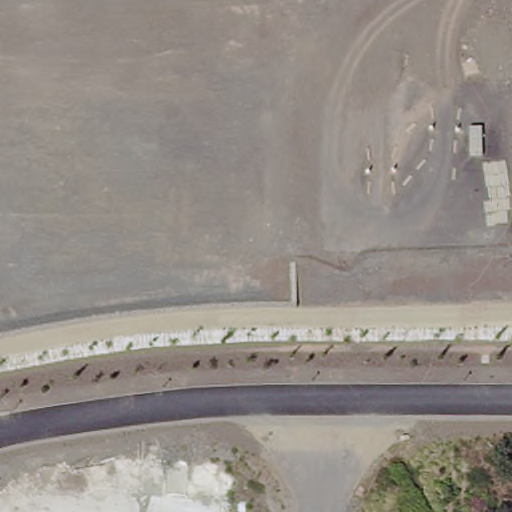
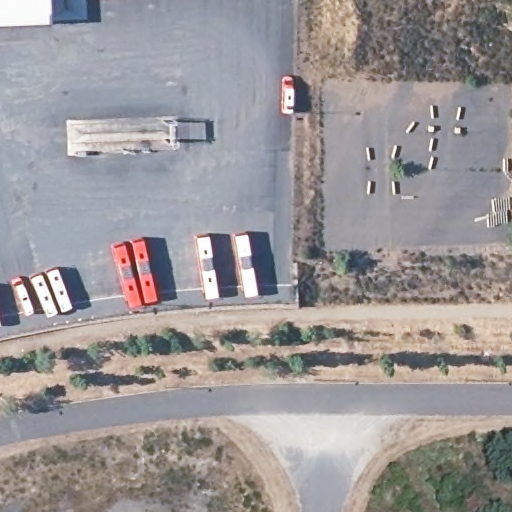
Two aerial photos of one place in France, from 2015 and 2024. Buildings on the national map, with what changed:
new [(42,0),(43,19),(0,20),(0,0),(42,0)]

